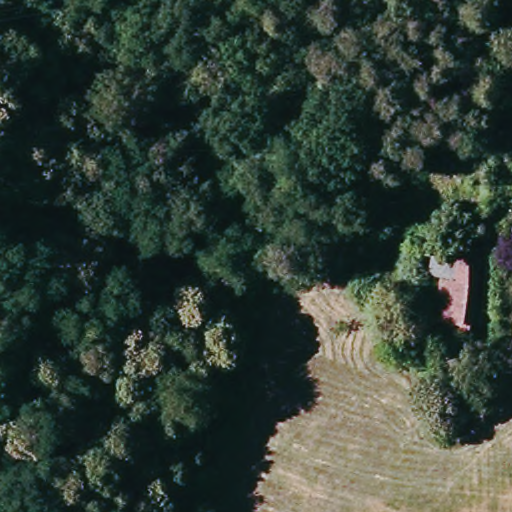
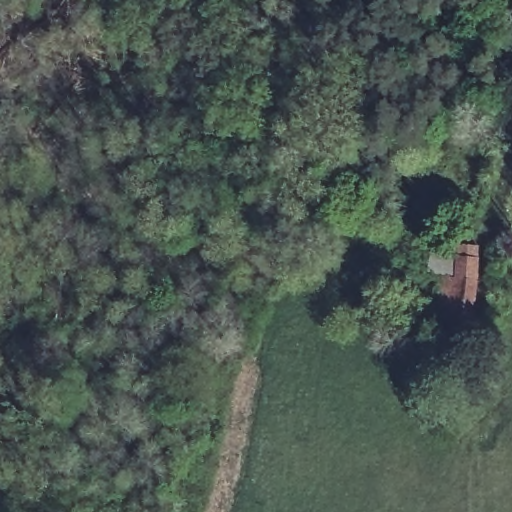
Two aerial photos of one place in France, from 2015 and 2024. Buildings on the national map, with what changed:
unchanged [(452,282),(455,272),(439,269),(443,249),(471,253),(471,246),(484,248),(478,321),(466,320),(468,310),(463,309),(447,307),(452,282)]

